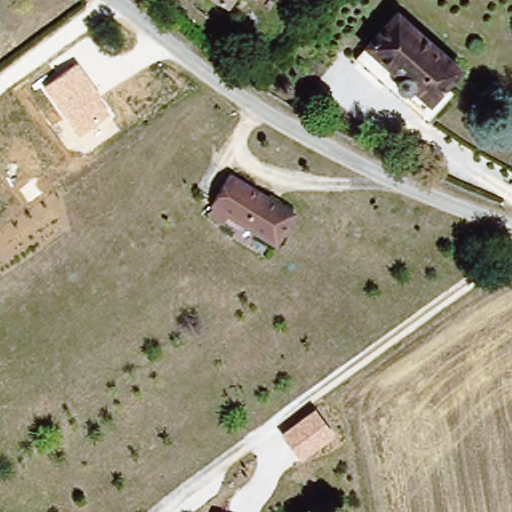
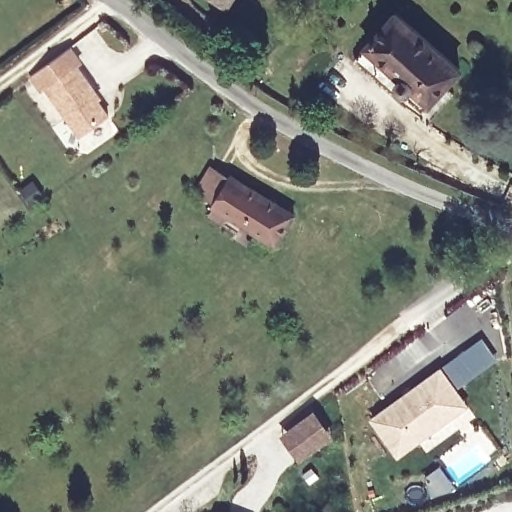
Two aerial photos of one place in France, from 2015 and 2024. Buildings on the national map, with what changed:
unchanged [(232,4),(225,0),(234,0),(232,4)]
unchanged [(366,52),(409,4),(470,59),(429,106),(366,52)]
unchanged [(103,99),(100,101),(111,117),(78,139),(42,88),(77,64),(103,99)]
unchanged [(277,246),(230,216),(225,225),(210,215),(216,207),(213,205),(232,175),(296,215),(277,246)]
new [(470,404),(397,457),(368,419),(440,365),(470,404)]
unchanged [(335,436),(299,462),(280,434),(314,409),(335,436)]

